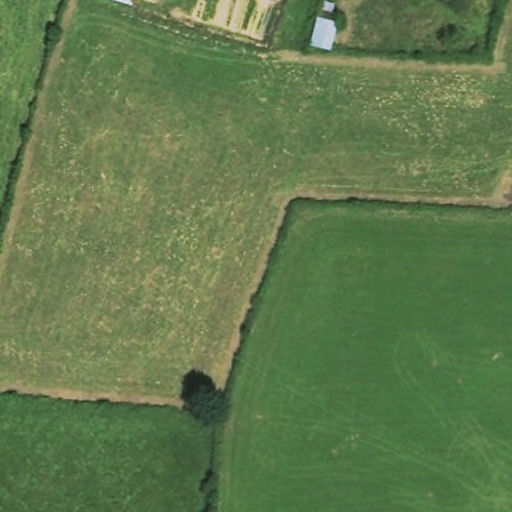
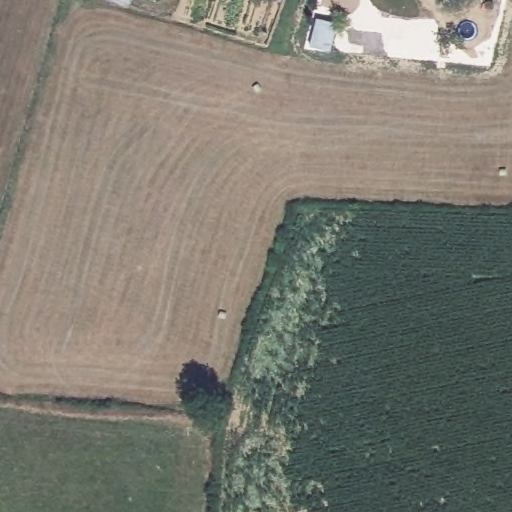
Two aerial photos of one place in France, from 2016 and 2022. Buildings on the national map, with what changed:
unchanged [(346,11),(331,55),(305,46),(320,3),(346,11)]

